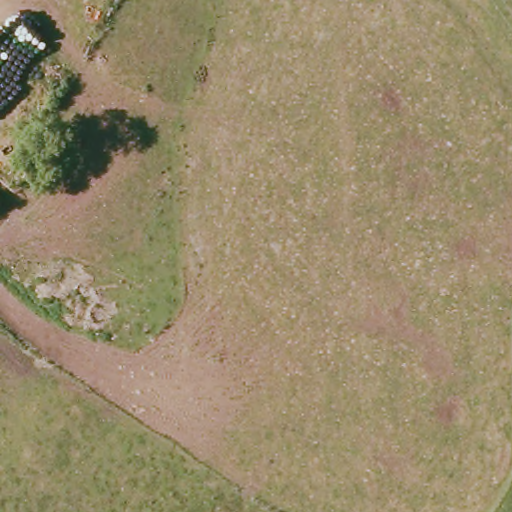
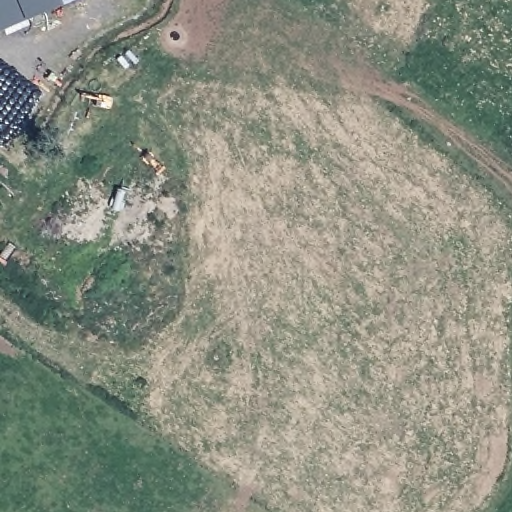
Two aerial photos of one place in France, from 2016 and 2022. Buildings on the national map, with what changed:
new [(0,0),(65,0),(0,28),(0,0)]

